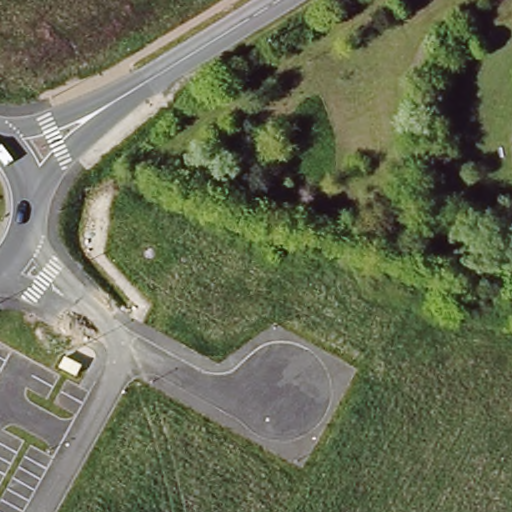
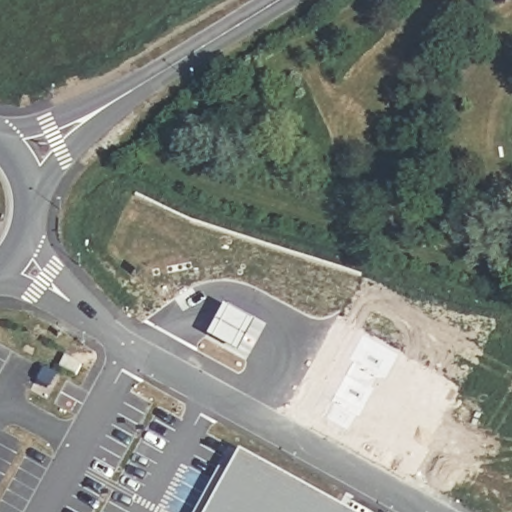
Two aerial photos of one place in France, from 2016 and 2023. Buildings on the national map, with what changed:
new [(224,307),(254,324),(237,355),(207,337),(224,307)]
new [(346,512),(206,512),(238,453),(346,512)]

